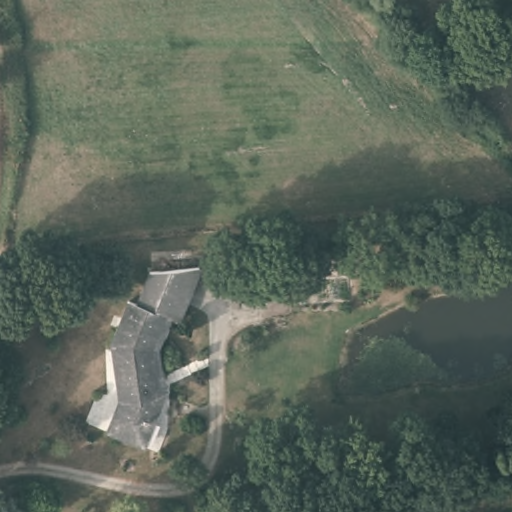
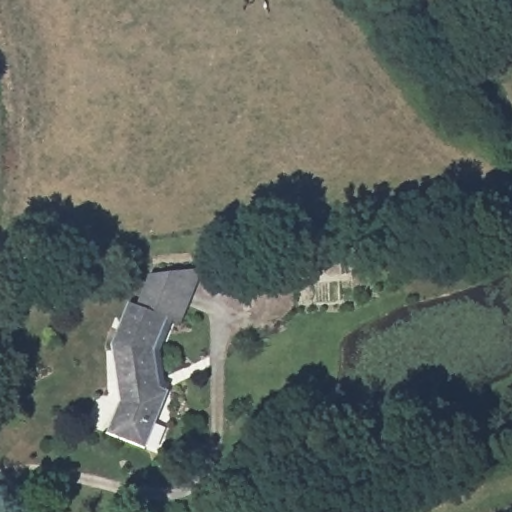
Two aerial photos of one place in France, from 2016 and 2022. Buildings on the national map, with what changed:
unchanged [(200,267),(179,321),(166,316),(150,347),(155,385),(167,392),(145,446),(109,430),(120,403),(113,341),(130,300),(139,303),(151,273),(200,267)]

